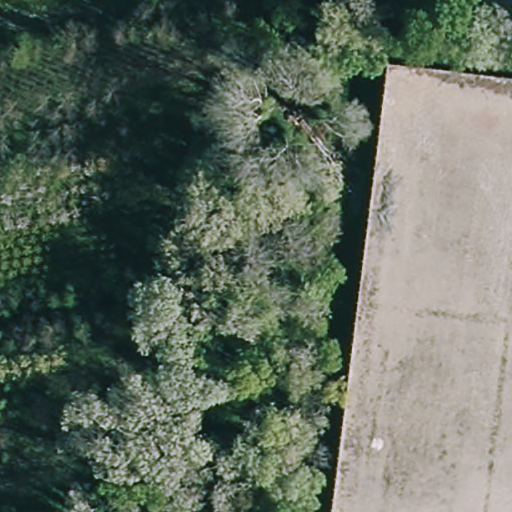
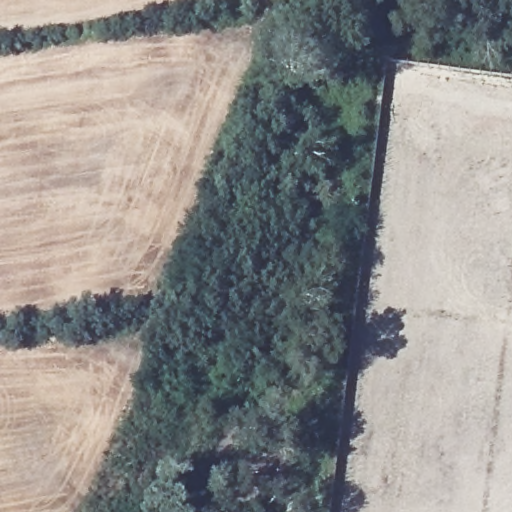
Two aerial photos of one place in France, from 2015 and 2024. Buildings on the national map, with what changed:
[]

